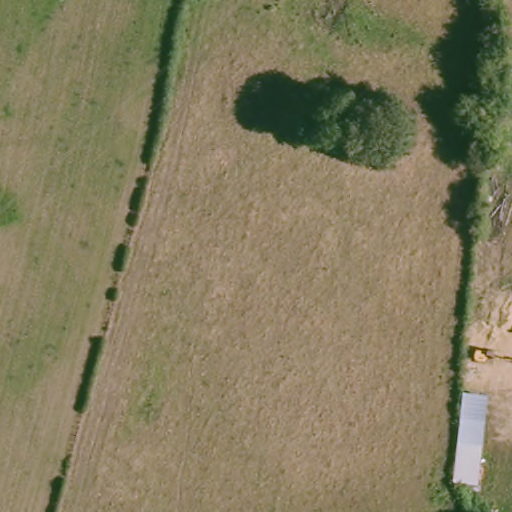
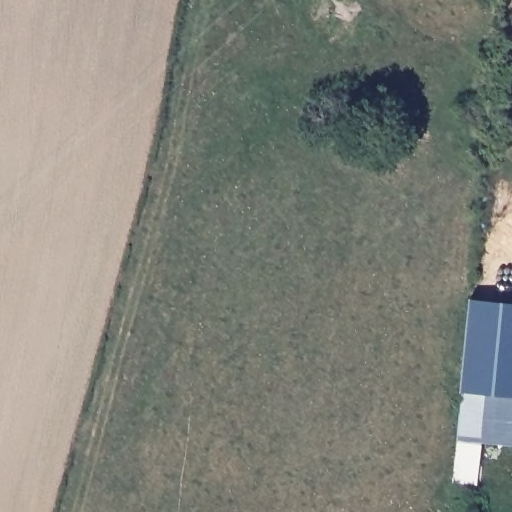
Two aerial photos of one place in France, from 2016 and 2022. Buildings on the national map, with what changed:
new [(512,296),(512,445),(484,444),(479,485),(447,476),(470,290),(512,296)]
demolished [(464,386),(490,388),(480,481),(454,477),(464,386)]

